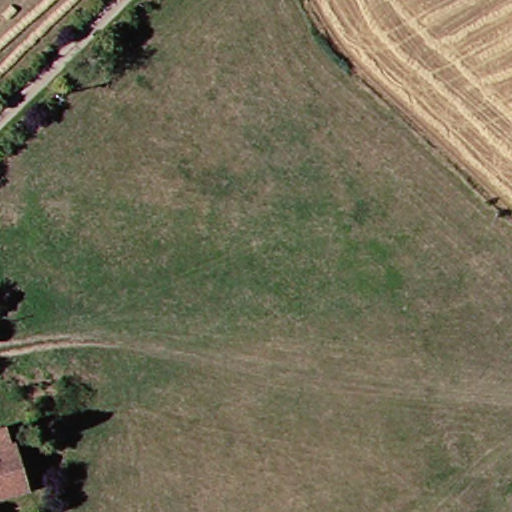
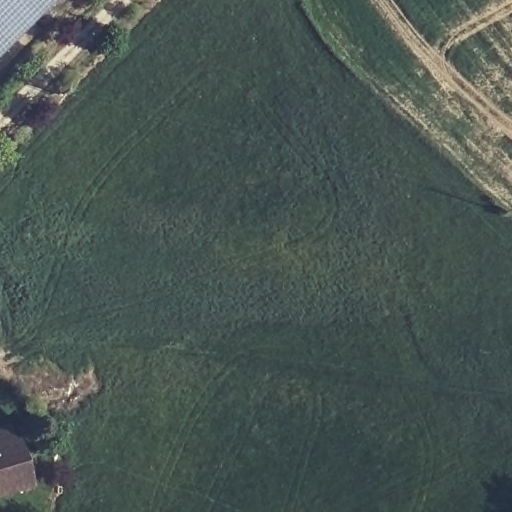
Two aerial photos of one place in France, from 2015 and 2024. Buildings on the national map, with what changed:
new [(0,57),(0,0),(58,0),(0,57)]
unchanged [(10,448),(16,446),(31,494),(0,503),(0,434),(5,433),(10,448)]

